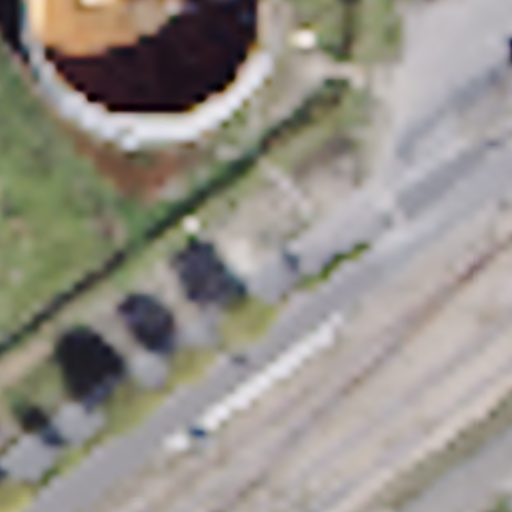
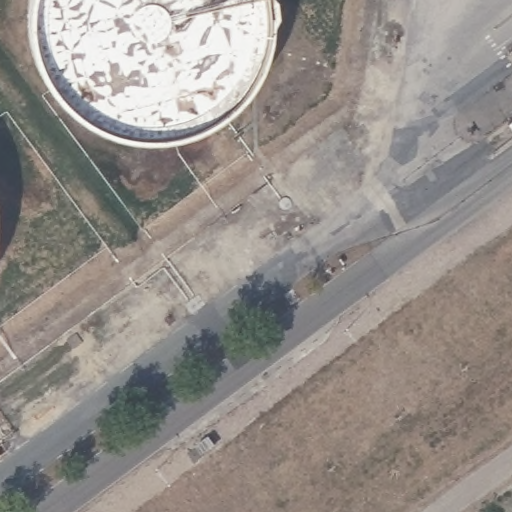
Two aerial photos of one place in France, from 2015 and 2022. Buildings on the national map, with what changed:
[]

